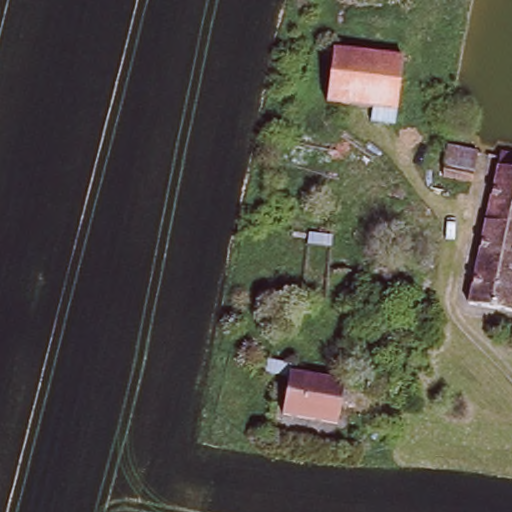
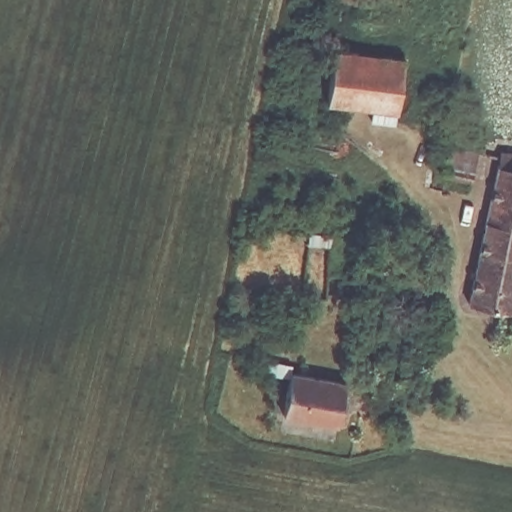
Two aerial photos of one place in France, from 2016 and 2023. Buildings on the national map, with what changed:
unchanged [(335,47),(403,56),(396,109),(327,100),(335,47)]
unchanged [(447,146),(478,151),(474,180),(442,175),(447,146)]
unchanged [(512,157),(512,305),(473,298),(502,155),(512,157)]
unchanged [(295,370),(347,382),(338,420),(286,407),(295,370)]

